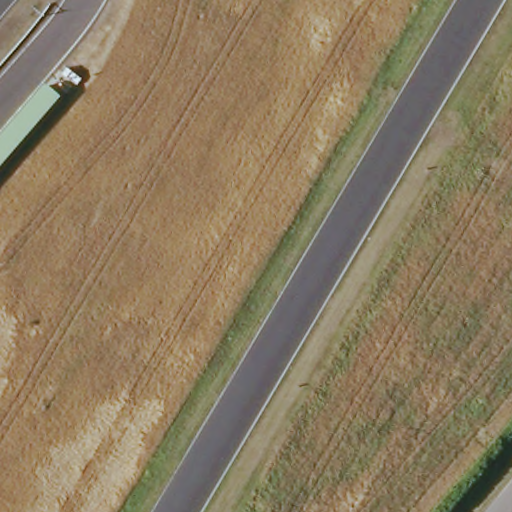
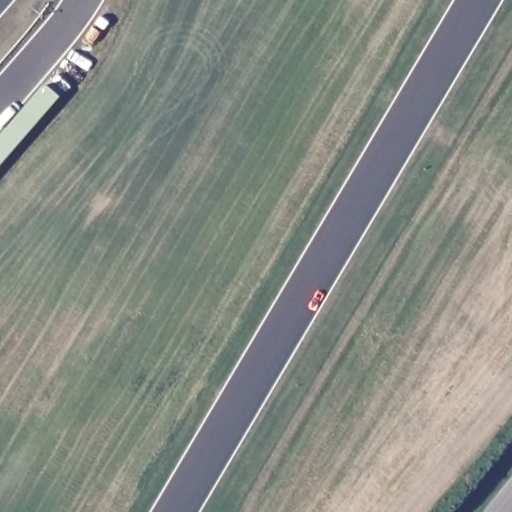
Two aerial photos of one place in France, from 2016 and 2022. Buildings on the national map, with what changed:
unchanged [(52,89),(65,100),(0,171),(0,146),(52,89)]

